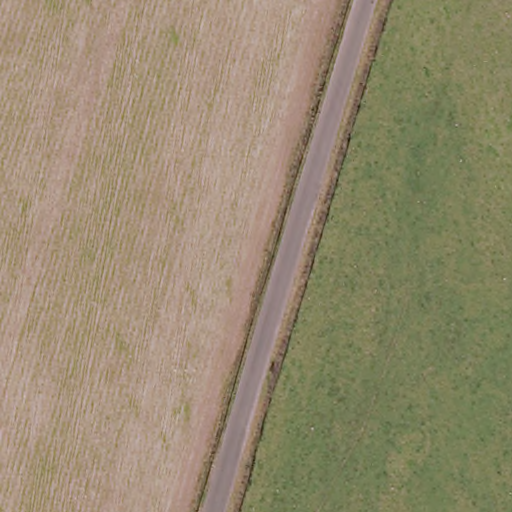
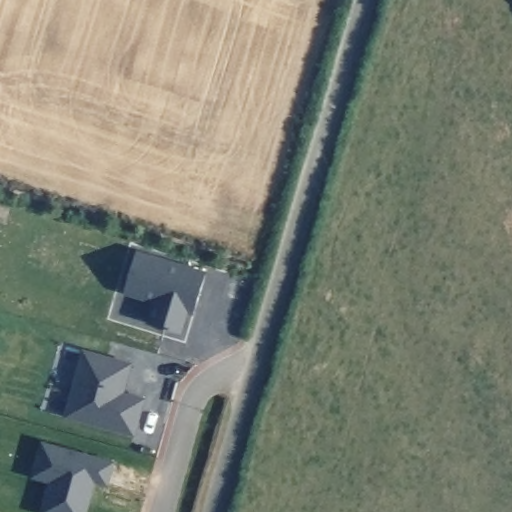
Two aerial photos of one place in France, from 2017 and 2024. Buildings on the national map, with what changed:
new [(194,314),(188,313),(182,333),(145,323),(151,302),(123,293),(136,249),(206,270),(194,314)]
new [(122,390),(143,396),(133,433),(65,413),(83,348),(130,361),(122,390)]
new [(112,459),(105,481),(93,477),(83,512),(49,512),(40,510),(49,477),(31,472),(41,439),(112,459)]

